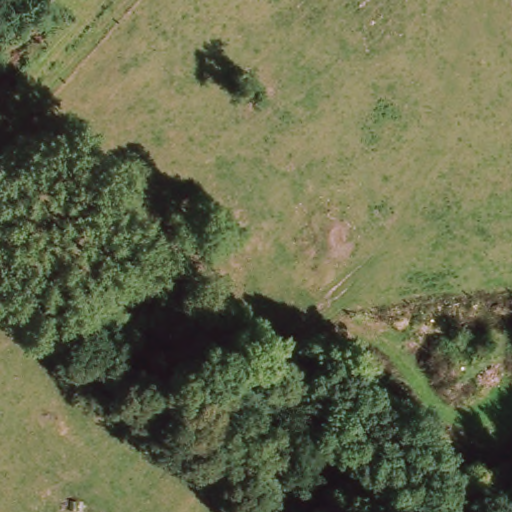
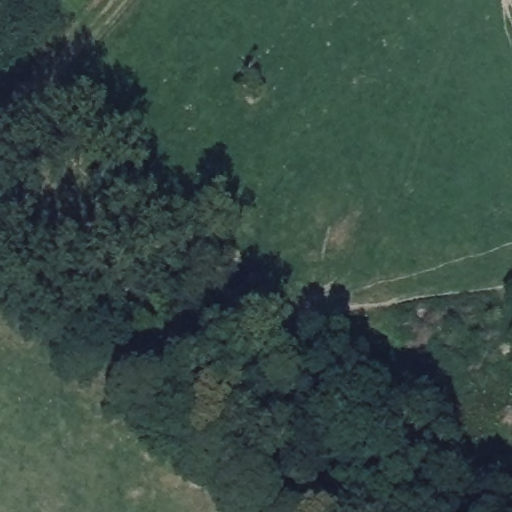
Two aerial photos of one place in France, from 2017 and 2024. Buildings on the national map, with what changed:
[]

